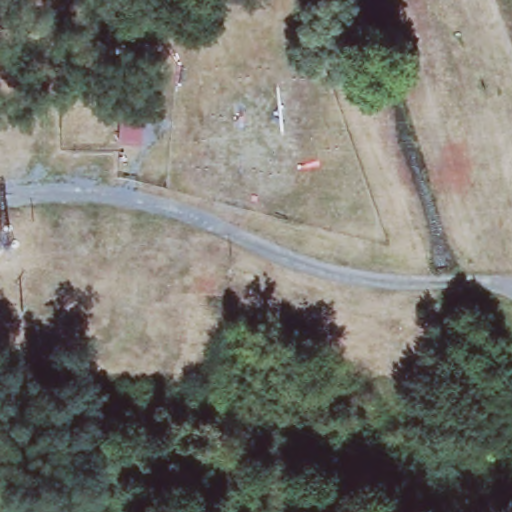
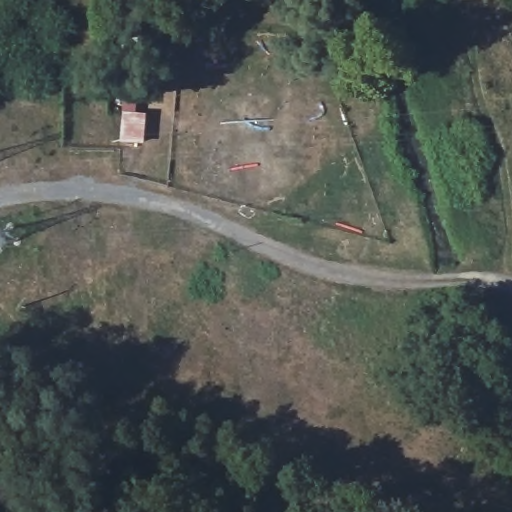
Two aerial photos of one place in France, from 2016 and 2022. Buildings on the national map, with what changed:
unchanged [(85,107),(85,97),(95,97),(95,107),(105,108),(104,134),(84,133),(85,107)]

